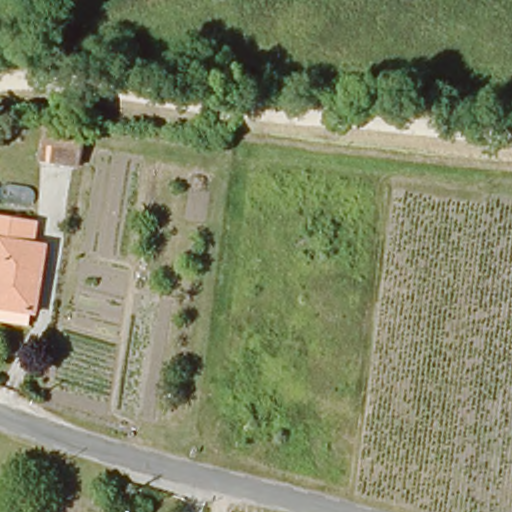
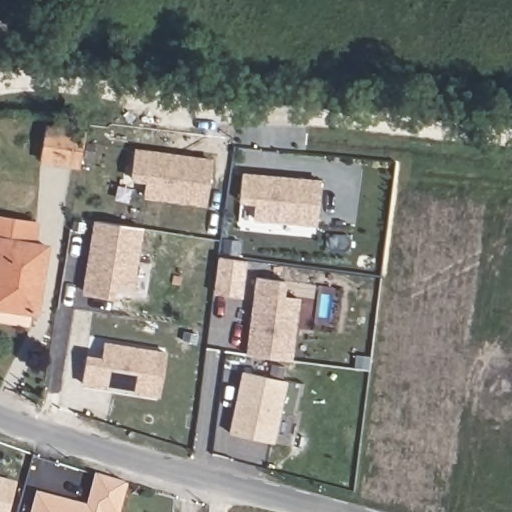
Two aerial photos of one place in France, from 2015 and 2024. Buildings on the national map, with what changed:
unchanged [(44,160),(50,130),(88,137),(83,166),(44,160)]
new [(212,160),(206,207),(143,199),(146,183),(130,181),(134,149),(212,160)]
new [(253,221),(255,205),(239,203),(242,173),(321,180),(317,227),(253,221)]
unchanged [(36,221),(36,241),(46,242),(34,319),(30,318),(27,332),(0,327),(0,236),(0,215),(36,221)]
new [(93,221),(143,229),(134,288),(117,286),(115,300),(82,295),(93,221)]
new [(243,297),(213,293),(217,257),(248,262),(243,297)]
new [(256,278),(286,282),(285,297),(300,299),(293,360),(245,353),(256,278)]
new [(102,357),(104,344),(165,354),(158,397),(83,386),(88,355),(102,357)]
new [(241,372),(287,381),(275,443),(229,433),(241,372)]
demolished [(120,422),(132,425),(129,436),(118,432),(120,422)]
new [(94,473),(129,483),(122,512),(31,512),(36,492),(86,504),(94,473)]
new [(17,483),(9,512),(0,512),(0,479),(17,483)]

